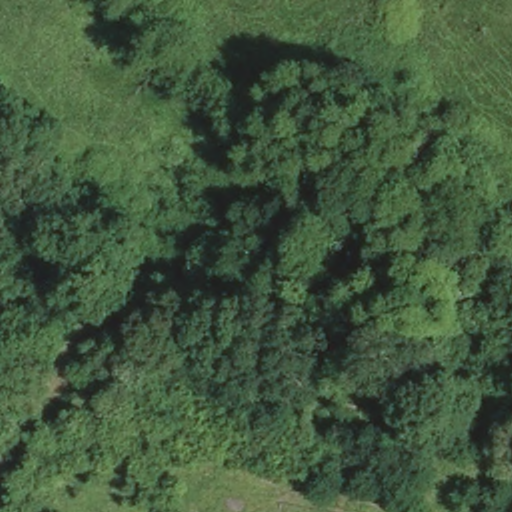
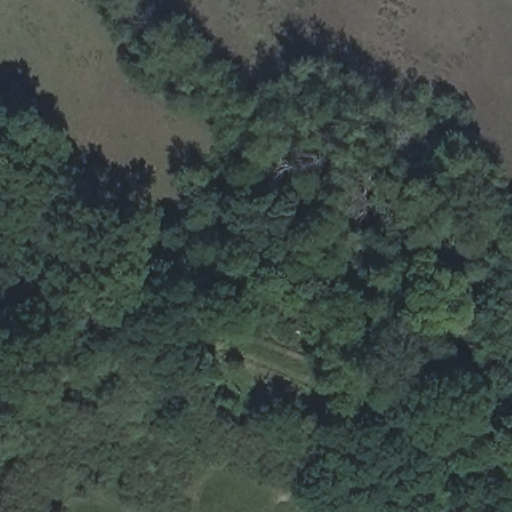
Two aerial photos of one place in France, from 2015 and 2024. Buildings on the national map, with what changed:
[]

